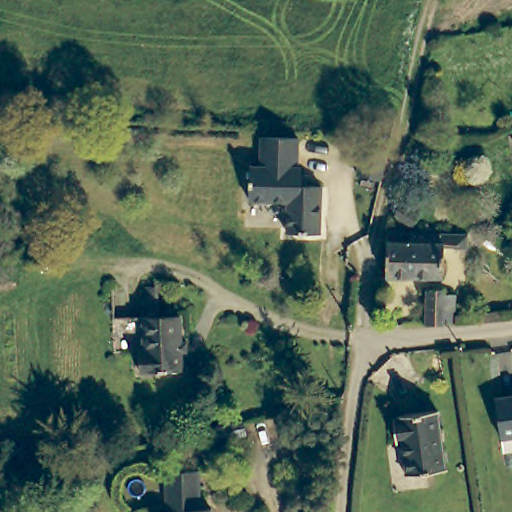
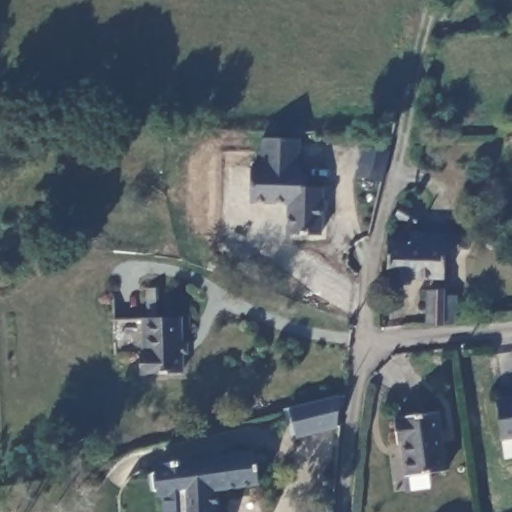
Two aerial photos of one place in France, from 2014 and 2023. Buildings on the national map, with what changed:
unchanged [(320,231),(288,231),(289,201),(250,201),(251,166),(258,166),(259,136),(297,136),(296,167),(300,167),(300,172),(311,172),(311,185),(321,185),(320,231)]
unchanged [(381,180),(357,176),(362,147),(387,151),(381,180)]
unchanged [(400,214),(418,225),(412,236),(393,224),(400,214)]
unchanged [(454,242),(454,256),(443,256),(443,288),(386,288),(387,242),(443,243),(454,242)]
unchanged [(193,353),(186,353),(187,371),(144,374),(143,352),(118,352),(117,317),(150,317),(149,286),(159,286),(161,317),(184,316),(185,342),(192,342),(193,353)]
unchanged [(455,294),(455,322),(444,323),(424,325),(425,289),(443,288),(444,293),(455,294)]
new [(338,395),(336,426),(296,436),(288,406),(338,395)]
unchanged [(512,397),(512,437),(500,439),(494,400),(512,397)]
unchanged [(407,474),(402,440),(397,441),(393,418),(398,417),(398,414),(436,410),(446,468),(407,474)]
unchanged [(240,421),(244,435),(215,442),(211,429),(240,421)]
unchanged [(167,511),(165,469),(198,467),(200,505),(211,505),(211,512),(161,512),(167,511)]

